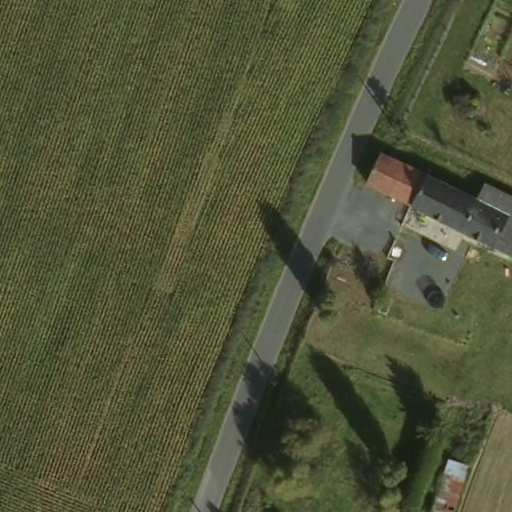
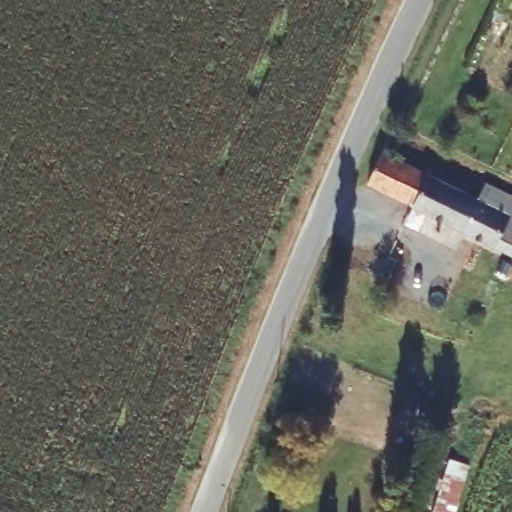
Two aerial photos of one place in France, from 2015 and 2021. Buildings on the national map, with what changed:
unchanged [(366,180),(377,152),(477,199),(484,184),(512,197),(512,251),(366,180)]
unchanged [(468,463),(454,512),(432,512),(451,459),(468,463)]

